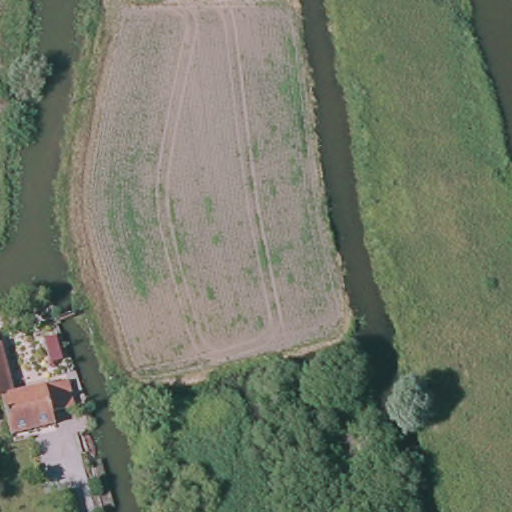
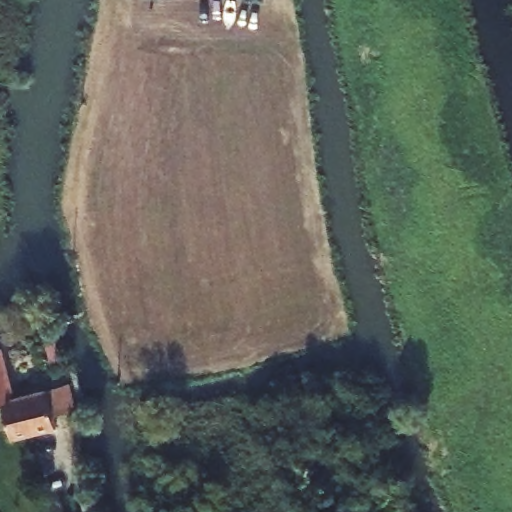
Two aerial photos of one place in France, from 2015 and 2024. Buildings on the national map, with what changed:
unchanged [(252,0),(275,0),(275,4),(252,0)]
unchanged [(52,417),(55,429),(15,441),(4,400),(0,401),(0,348),(2,348),(15,396),(45,389),(69,383),(75,412),(52,417)]

